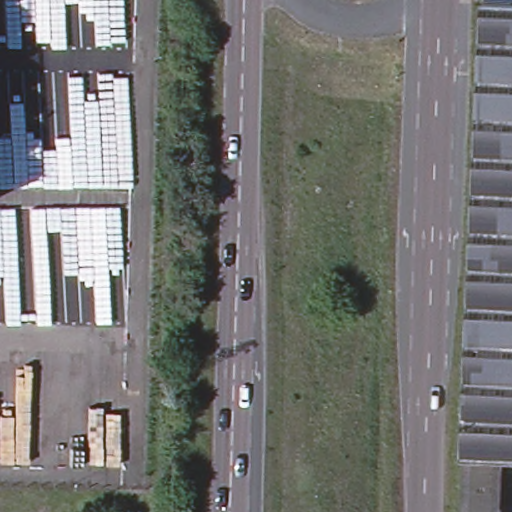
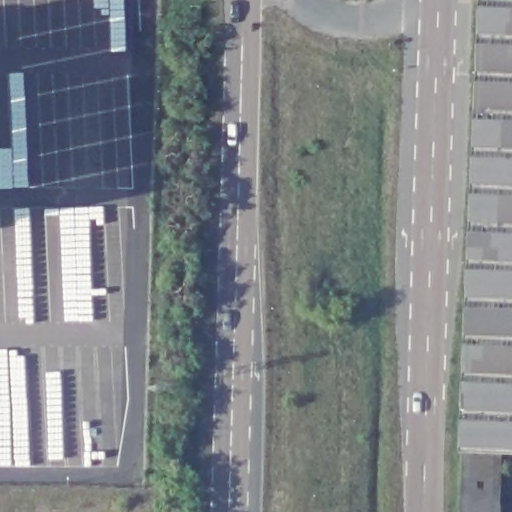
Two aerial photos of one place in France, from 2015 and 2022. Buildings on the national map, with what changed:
unchanged [(484,0),(512,0),(512,503),(502,502),(501,512),(458,512),(480,56),(484,0)]

